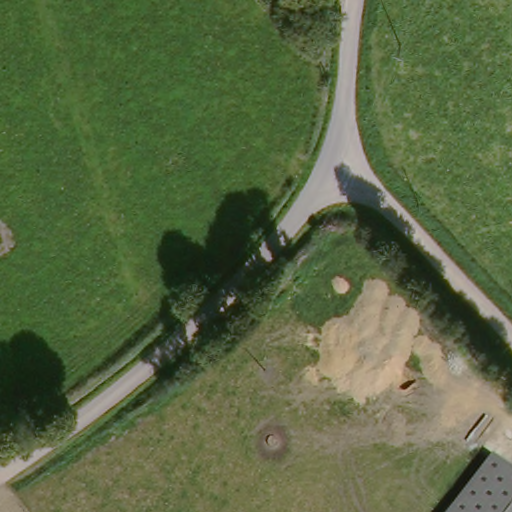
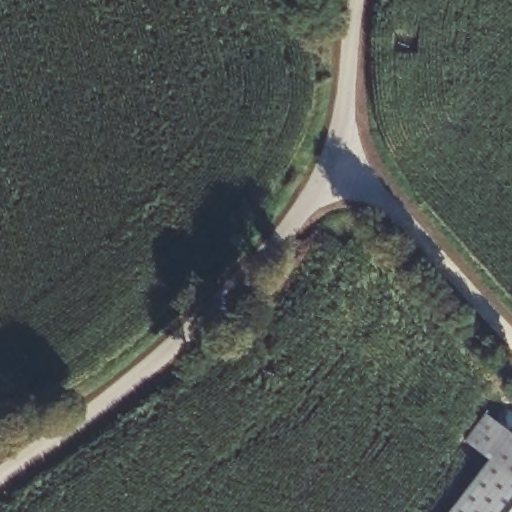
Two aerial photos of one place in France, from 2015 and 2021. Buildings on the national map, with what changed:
new [(512,475),(492,461),(488,459),(464,441),(486,412),(512,432),(512,475)]
unchanged [(492,461),(512,475),(512,512),(453,512),(492,461)]

